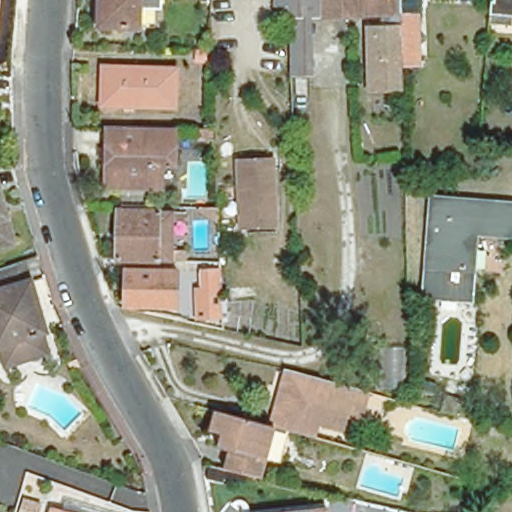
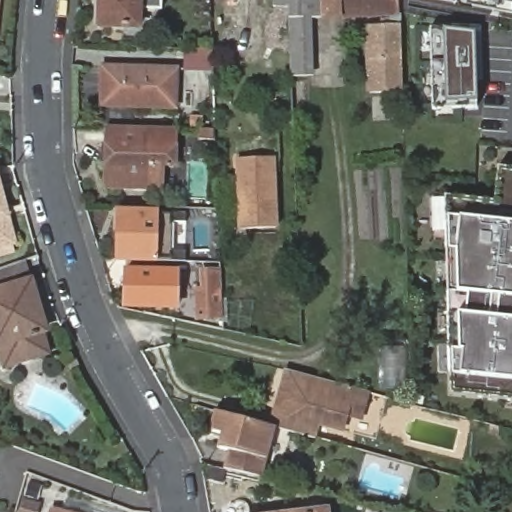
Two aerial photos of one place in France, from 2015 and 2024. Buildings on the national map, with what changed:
unchanged [(0,0),(2,0),(0,13),(0,0)]
unchanged [(95,0),(157,0),(157,10),(135,9),(134,27),(94,26),(95,0)]
unchanged [(205,8),(187,7),(187,0),(204,0),(205,8)]
unchanged [(232,4),(207,5),(207,0),(233,0),(232,4)]
unchanged [(290,56),(289,26),(272,26),(274,11),(275,0),(320,0),(321,23),(307,23),(309,81),(291,81),(290,58),(290,56)]
unchanged [(342,22),(321,23),(320,0),(341,0),(342,22)]
unchanged [(342,22),(341,0),(398,0),(398,19),(389,20),(342,22)]
new [(434,0),(512,0),(512,15),(434,0)]
demolished [(490,12),(491,0),(512,0),(512,20),(512,26),(488,24),(490,12)]
unchanged [(370,98),(368,31),(389,30),(389,20),(398,19),(401,19),(401,24),(402,56),(402,69),(403,97),(370,98)]
new [(490,109),(431,110),(428,22),(487,23),(490,109)]
unchanged [(207,51),(207,63),(196,62),(197,51),(207,51)]
unchanged [(102,100),(103,67),(176,69),(175,107),(131,106),(129,106),(102,105),(102,100)]
unchanged [(176,165),(173,165),(162,165),(162,181),(162,188),(121,187),(106,187),(106,161),(107,146),(107,126),(177,128),(176,165)]
unchanged [(215,138),(201,138),(201,128),(215,129),(215,138)]
unchanged [(239,232),(237,164),(273,162),(276,231),(239,232)]
new [(447,215),(445,215),(444,195),(493,200),(497,166),(512,168),(512,401),(451,394),(449,314),(447,313),(447,290),(448,290),(448,250),(447,215)]
unchanged [(14,238),(0,242),(0,187),(5,204),(14,238)]
demolished [(453,208),(464,208),(465,202),(512,207),(512,235),(475,232),(472,270),(470,300),(426,296),(428,267),(433,200),(453,202),(453,208)]
unchanged [(112,260),(112,211),(167,212),(174,212),(173,222),(167,222),(167,262),(112,260)]
unchanged [(126,271),(178,272),(177,282),(186,282),(185,298),(177,298),(177,308),(176,308),(176,317),(165,317),(166,308),(125,306),(126,271)]
unchanged [(220,296),(219,300),(221,328),(217,328),(202,329),(199,330),(198,328),(197,308),(197,301),(196,290),(212,289),(211,284),(211,278),(211,273),(219,273),(220,284),(220,296)]
unchanged [(40,336),(36,337),(42,358),(0,371),(0,295),(25,287),(40,336)]
unchanged [(405,378),(405,388),(380,389),(378,349),(403,348),(405,378)]
unchanged [(285,432),(273,429),(267,427),(266,427),(282,370),(332,385),(363,393),(356,420),(341,416),(337,431),(312,424),(308,439),(285,432)]
unchanged [(267,427),(258,460),(254,477),(219,469),(224,450),(217,449),(212,447),(216,433),(204,430),(210,411),(254,423),(266,427),(267,427)]
unchanged [(77,512),(59,512),(60,507),(77,512)]

